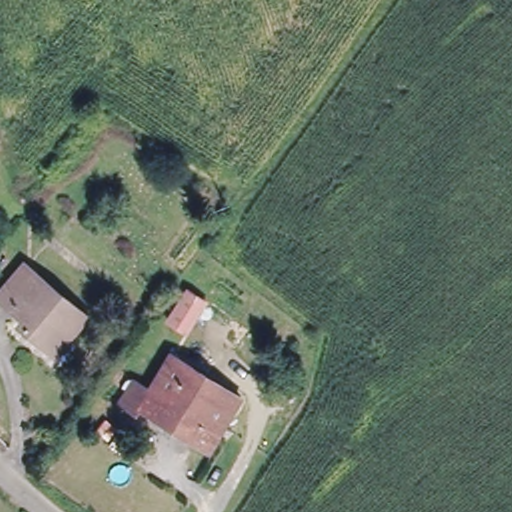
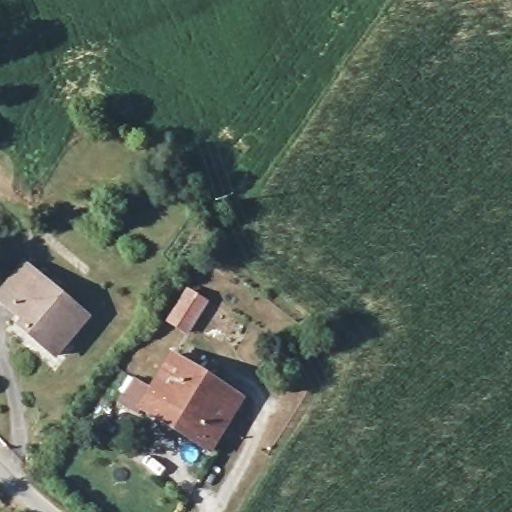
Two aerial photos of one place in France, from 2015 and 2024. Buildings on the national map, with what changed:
unchanged [(30,323),(35,316),(7,295),(13,289),(27,266),(87,310),(65,341),(58,350),(30,323)]
unchanged [(212,302),(190,337),(166,324),(190,289),(212,302)]
unchanged [(245,397),(211,449),(148,405),(141,414),(121,403),(134,383),(152,392),(178,353),(245,397)]

